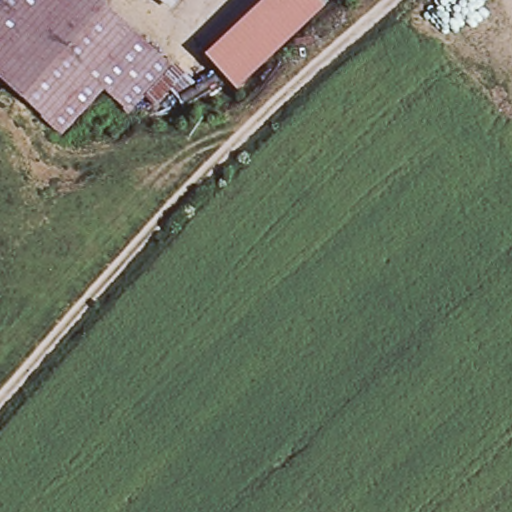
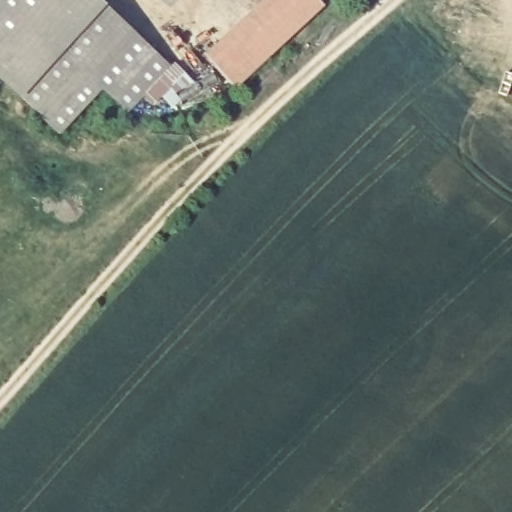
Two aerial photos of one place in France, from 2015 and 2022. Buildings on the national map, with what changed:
unchanged [(129,26),(89,70),(103,82),(62,129),(0,74),(0,3),(2,0),(101,0),(129,26)]
unchanged [(272,0),(316,0),(229,83),(207,60),(272,0)]
unchanged [(89,70),(129,26),(167,62),(129,106),(103,82),(89,70)]

